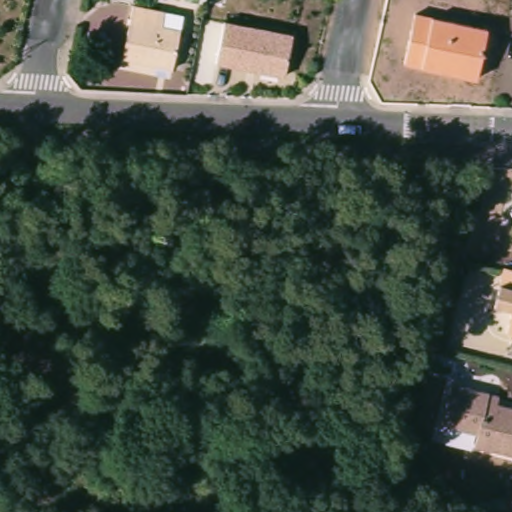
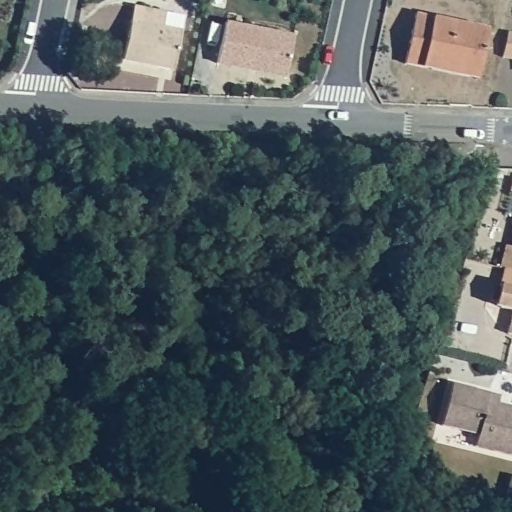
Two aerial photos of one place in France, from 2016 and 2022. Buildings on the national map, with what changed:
unchanged [(172,66),(123,57),(134,5),(166,11),(183,14),(180,29),(180,31),(172,66)]
unchanged [(487,26),(477,78),(405,62),(415,11),(487,26)]
unchanged [(296,37),(286,75),(220,62),(228,23),(296,37)]
unchanged [(512,183),(512,191),(510,190),(512,183)]
unchanged [(512,228),(512,246),(507,245),(512,228)]
unchanged [(504,270),(512,273),(512,313),(499,309),(505,290),(499,288),(504,270)]
unchanged [(512,318),(512,336),(507,335),(512,318)]
unchanged [(468,443),(471,431),(435,422),(445,381),(483,390),(493,393),(491,401),(512,407),(512,447),(510,454),(468,443)]
unchanged [(510,474),(512,475),(512,508),(501,509),(510,474)]

